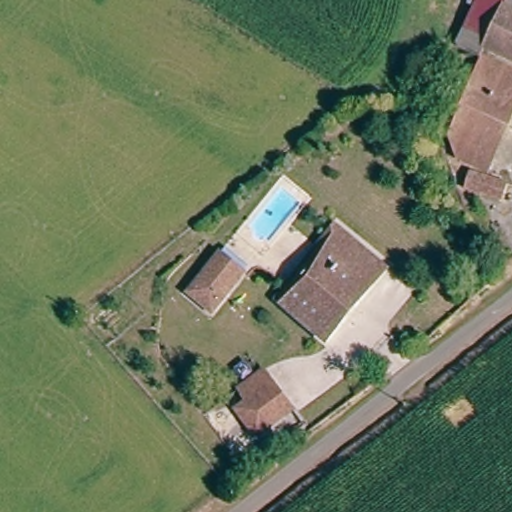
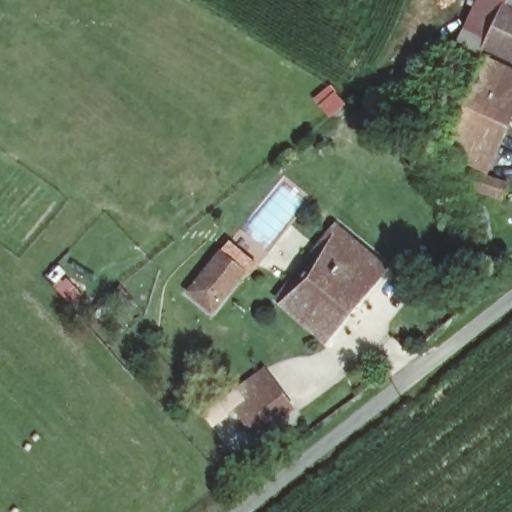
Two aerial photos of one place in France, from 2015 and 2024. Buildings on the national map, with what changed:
unchanged [(488,175),(508,183),(501,203),(449,181),(457,157),(448,137),(476,67),(451,56),(472,9),(464,3),(465,0),(512,0),(512,122),(488,175)]
unchanged [(277,300),(337,230),(385,269),(327,342),(324,338),(277,300)]
unchanged [(227,260),(232,257),(250,277),(247,281),(217,311),(197,290),(223,264),(227,260)]
unchanged [(263,437),(244,413),(254,404),(242,392),(269,372),(279,382),(298,407),(263,437)]

